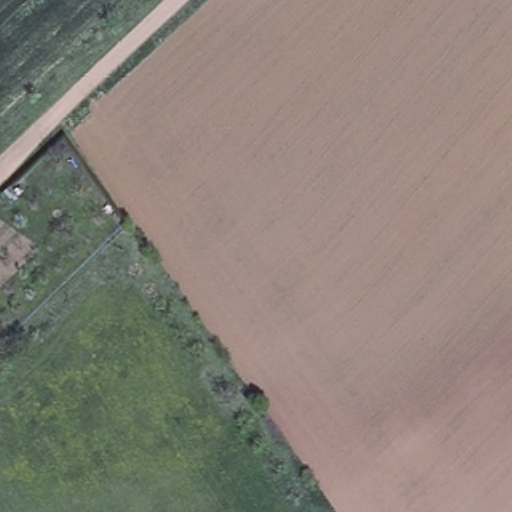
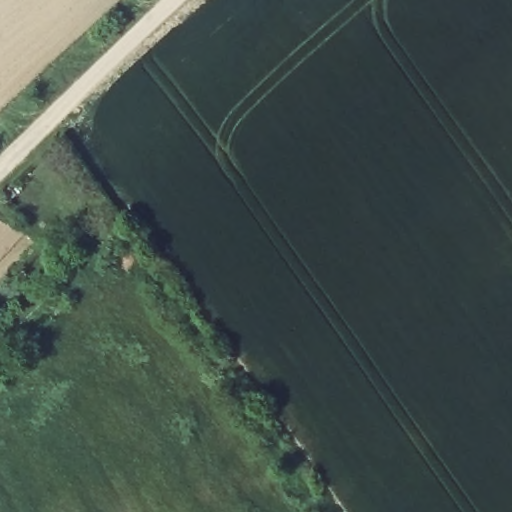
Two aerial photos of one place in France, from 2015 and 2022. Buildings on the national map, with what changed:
[]

